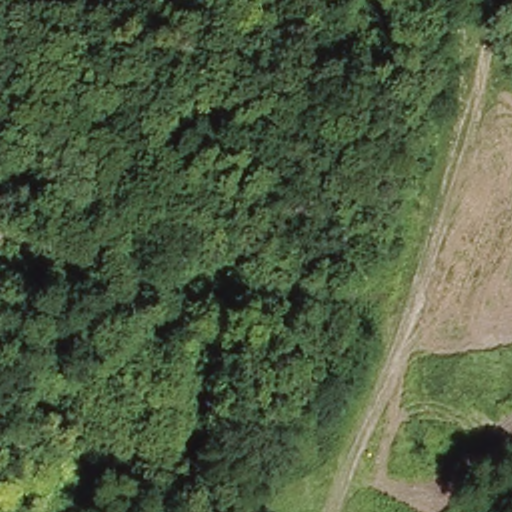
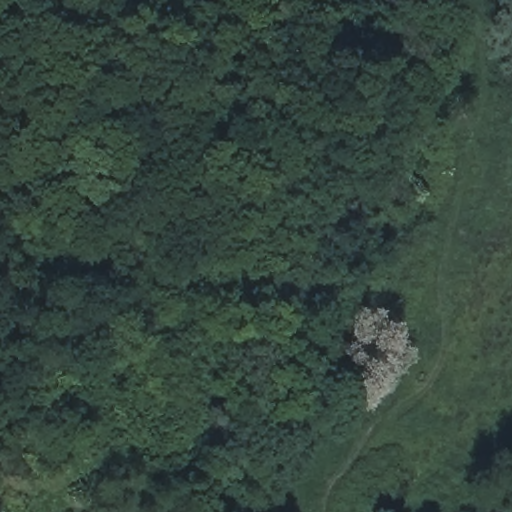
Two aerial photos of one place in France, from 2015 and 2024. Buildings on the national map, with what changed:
[]

